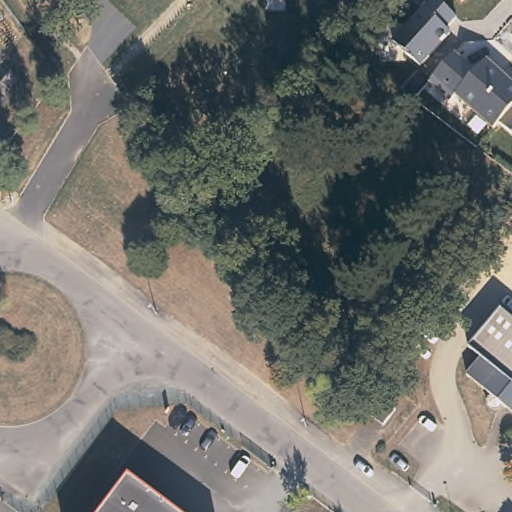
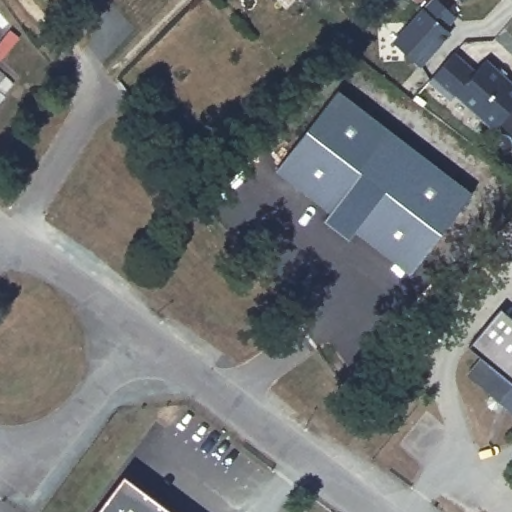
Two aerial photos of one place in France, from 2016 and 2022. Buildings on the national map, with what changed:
unchanged [(451,32),(421,64),(396,40),(431,0),(437,0),(459,17),(446,29),(451,32)]
unchanged [(494,129),(455,95),(450,100),(429,82),(453,54),(473,71),(487,60),(512,82),(512,133),(500,123),(494,129)]
new [(338,89),(474,194),(411,275),(355,230),(349,237),(325,220),(330,212),(274,171),(338,89)]
unchanged [(512,413),(503,406),(498,411),(492,411),(490,411),(487,407),(486,405),(485,402),(486,400),(485,398),(489,395),(466,374),(478,358),(463,346),(498,306),(512,317),(512,413)]
unchanged [(395,414),(382,430),(367,417),(380,401),(395,414)]
unchanged [(122,471),(179,512),(92,512),(122,471)]

